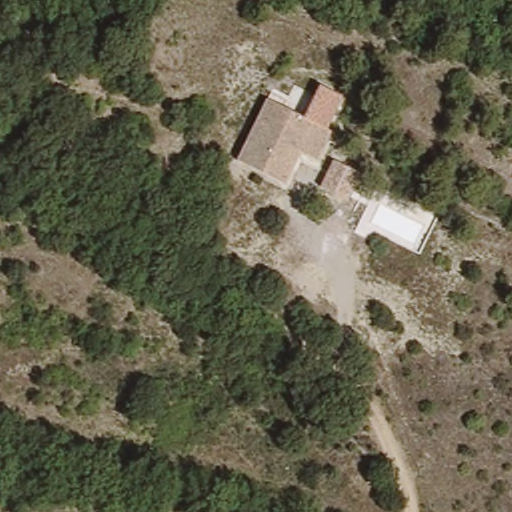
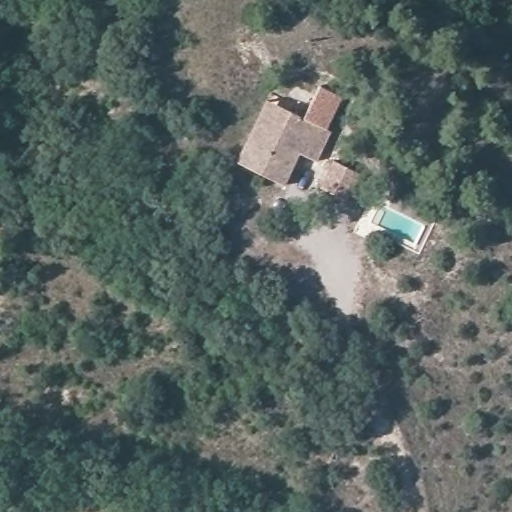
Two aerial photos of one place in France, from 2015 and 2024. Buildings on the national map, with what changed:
unchanged [(315,95),(320,86),(341,99),(324,137),(301,122),(315,95)]
unchanged [(279,183),(235,157),(245,139),(256,117),(265,101),(280,109),(290,116),(301,122),(325,137),(311,167),(293,155),(286,170),(279,183)]

